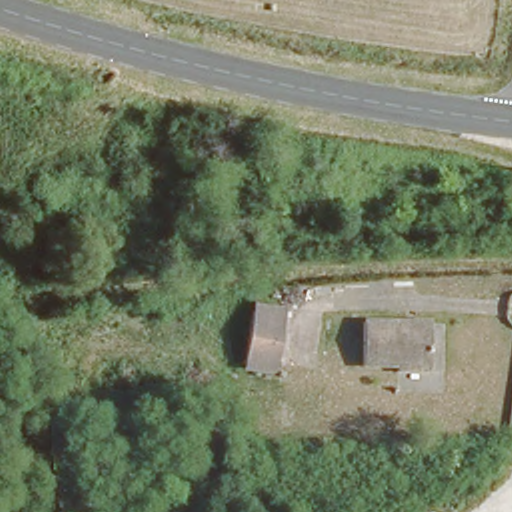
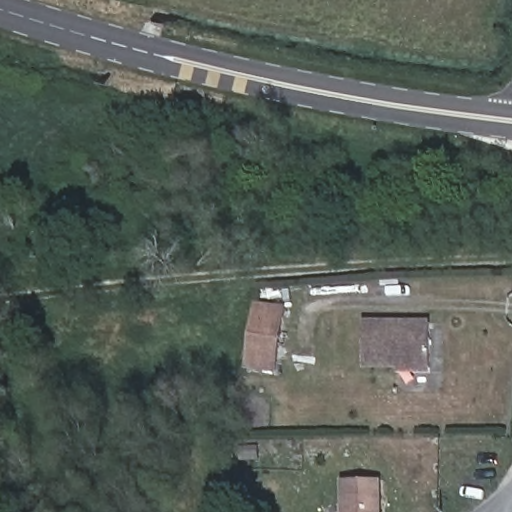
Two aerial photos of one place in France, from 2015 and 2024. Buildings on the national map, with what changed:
unchanged [(273,318),(264,367),(234,363),(242,314),(273,318)]
unchanged [(419,367),(352,369),(350,324),(418,322),(419,367)]
new [(383,480),(383,512),(340,512),(340,481),(383,480)]

